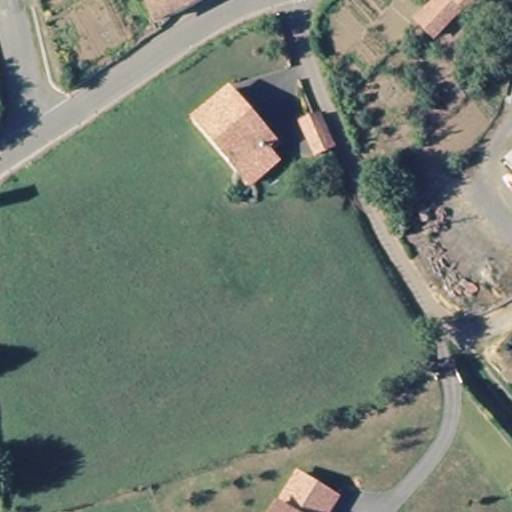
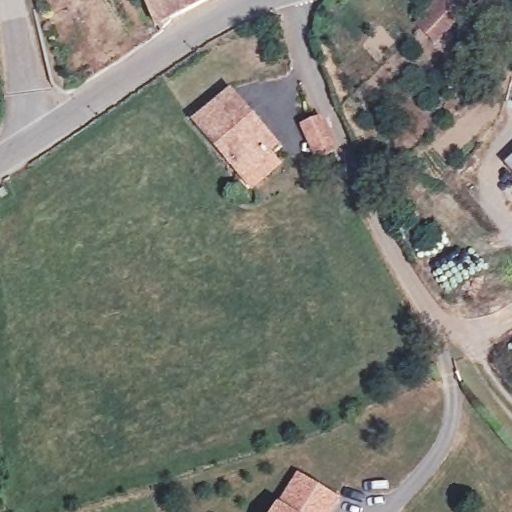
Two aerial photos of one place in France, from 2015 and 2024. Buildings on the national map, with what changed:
unchanged [(215,0),(164,26),(151,0),(215,0)]
unchanged [(436,21),(455,0),(503,0),(475,30),(469,25),(455,39),(445,49),(427,31),(436,21)]
unchanged [(249,182),(194,113),(229,84),(283,154),(249,182)]
unchanged [(322,157),(306,125),(323,117),(340,148),(322,157)]
unchanged [(510,172),(512,170),(512,174),(510,172)]
unchanged [(290,480),(329,504),(324,512),(271,512),(290,480)]

